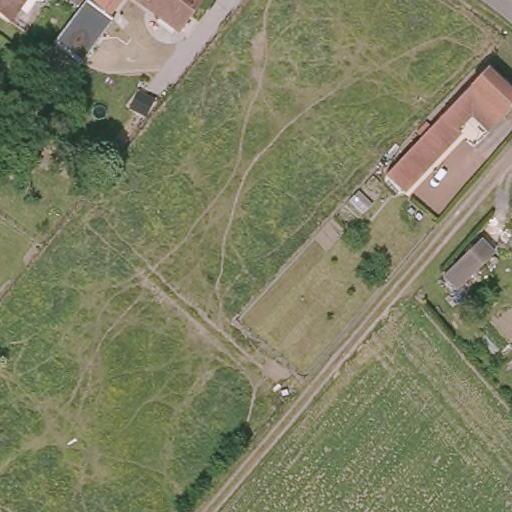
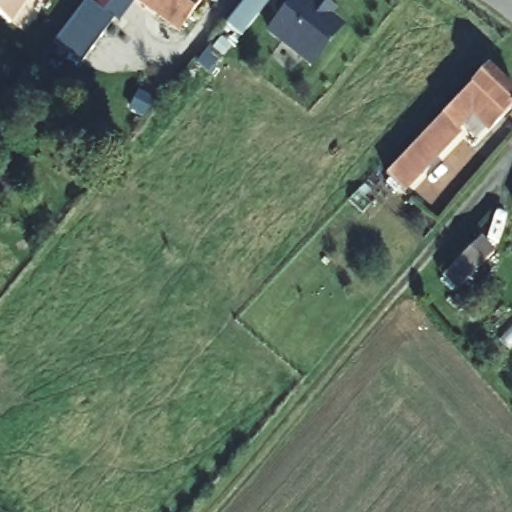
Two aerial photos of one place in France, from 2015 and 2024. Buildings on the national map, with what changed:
unchanged [(0,12),(0,0),(21,0),(8,17),(0,12)]
unchanged [(95,0),(104,0),(101,4),(95,0)]
unchanged [(136,0),(190,0),(169,26),(136,0)]
new [(265,0),(237,35),(221,21),(237,0),(265,0)]
new [(309,0),(319,0),(329,8),(324,14),(337,25),(307,62),(265,29),(288,0),(306,0),(308,1),(309,0)]
unchanged [(491,127),(472,110),(459,124),(461,126),(405,187),(387,171),(484,65),(512,89),(512,103),(491,127)]
unchanged [(491,252),(456,291),(436,273),(471,235),(491,252)]

